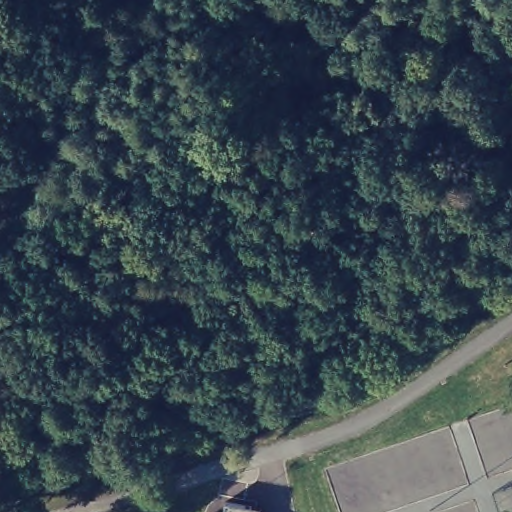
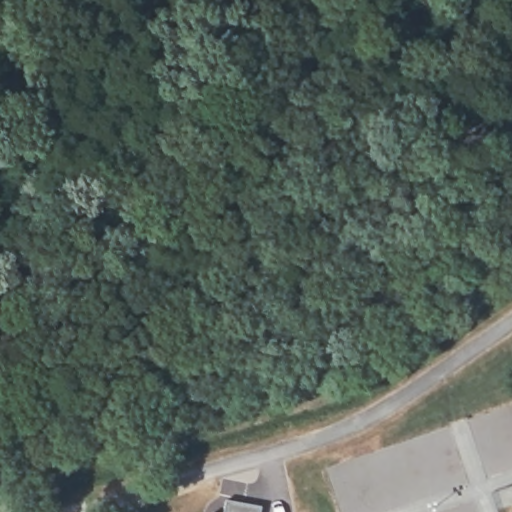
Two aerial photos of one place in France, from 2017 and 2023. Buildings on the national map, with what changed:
unchanged [(261,509),(261,512),(227,512),(227,504),(261,509)]

